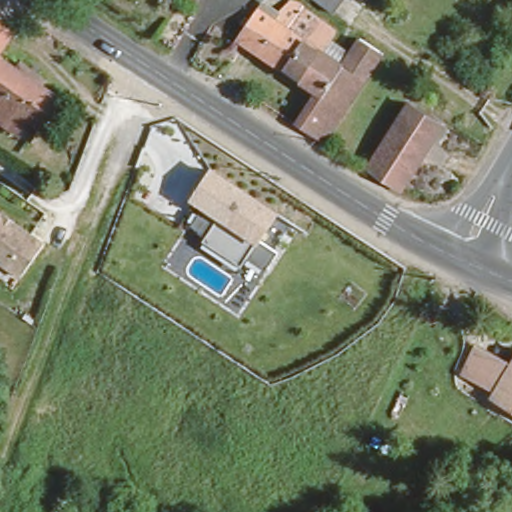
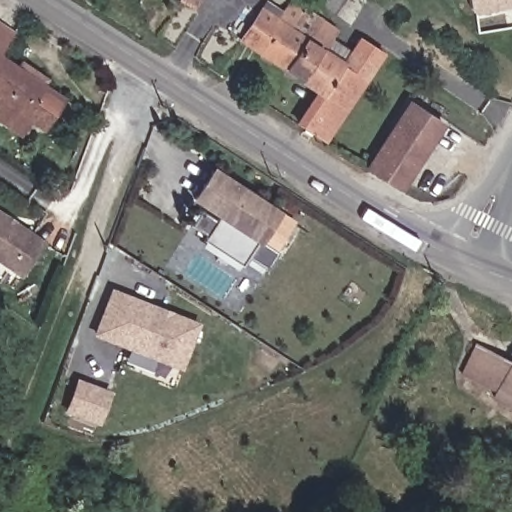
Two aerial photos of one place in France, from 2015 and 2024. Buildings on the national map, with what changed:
unchanged [(180,5),(173,0),(183,0),(180,5)]
unchanged [(323,15),(300,0),(333,0),(323,15)]
new [(512,9),(487,15),(487,12),(473,15),(470,0),(512,0),(512,9)]
unchanged [(27,18),(0,57),(0,1),(27,18)]
unchanged [(318,144),(295,128),(316,93),(295,78),(278,68),(240,41),(235,38),(256,10),(260,4),(275,13),(278,10),(292,19),(310,30),(322,37),(343,51),(353,38),(377,53),(322,139),(318,144)]
unchanged [(41,131),(27,120),(17,135),(0,123),(0,57),(19,70),(24,62),(50,79),(46,88),(62,100),(41,131)]
unchanged [(399,108),(431,128),(400,179),(367,159),(399,108)]
unchanged [(261,245),(277,255),(267,272),(249,259),(245,266),(205,243),(208,237),(192,227),(205,208),(192,199),(214,167),(282,212),(261,245)]
unchanged [(49,244),(27,277),(0,260),(0,211),(49,244)]
new [(112,288),(200,324),(181,371),(92,336),(112,288)]
unchanged [(490,394),(459,374),(477,347),(508,367),(512,362),(512,416),(487,401),(490,394)]
new [(112,392),(100,426),(65,414),(77,379),(112,392)]

